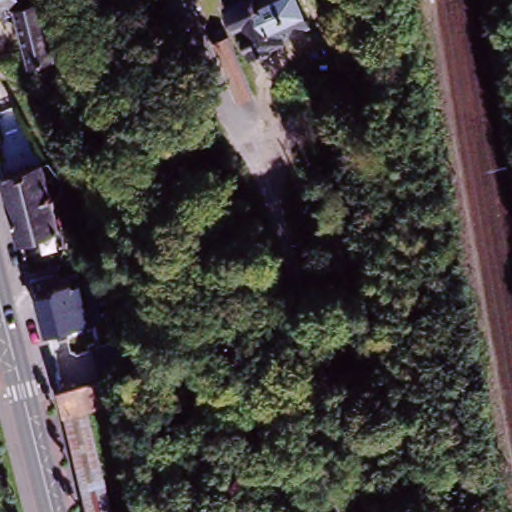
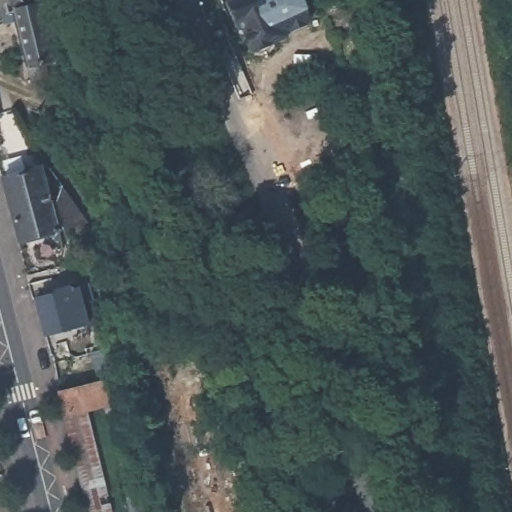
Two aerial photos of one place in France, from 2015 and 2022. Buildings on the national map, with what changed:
unchanged [(34,77),(31,64),(19,18),(10,21),(7,11),(0,13),(0,0),(37,0),(37,3),(41,2),(56,57),(49,59),(52,72),(57,89),(42,93),(37,89),(34,77)]
unchanged [(231,0),(296,0),(306,21),(279,33),(279,34),(281,35),(284,33),(286,36),(247,54),(245,51),(248,49),(237,23),(234,24),(226,2),(230,0),(231,0)]
unchanged [(380,54),(347,65),(339,39),(370,28),(380,54)]
unchanged [(254,96),(239,103),(212,43),(228,36),(254,96)]
unchanged [(0,120),(0,103),(4,118),(0,120)]
unchanged [(37,171),(46,201),(9,211),(9,212),(1,182),(37,171)]
unchanged [(85,229),(61,235),(55,209),(58,193),(85,229)]
unchanged [(9,212),(9,211),(46,201),(50,216),(55,237),(18,246),(9,212)]
unchanged [(24,309),(44,303),(44,300),(60,295),(60,299),(76,295),(88,292),(98,330),(87,333),(34,347),(24,309)]
unchanged [(135,401),(89,418),(110,512),(86,512),(59,397),(130,380),(135,401)]

